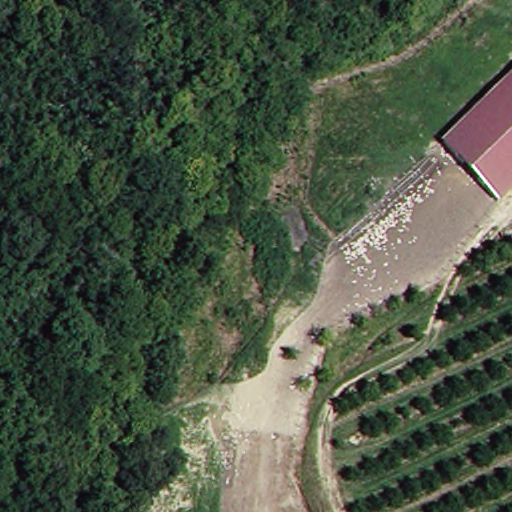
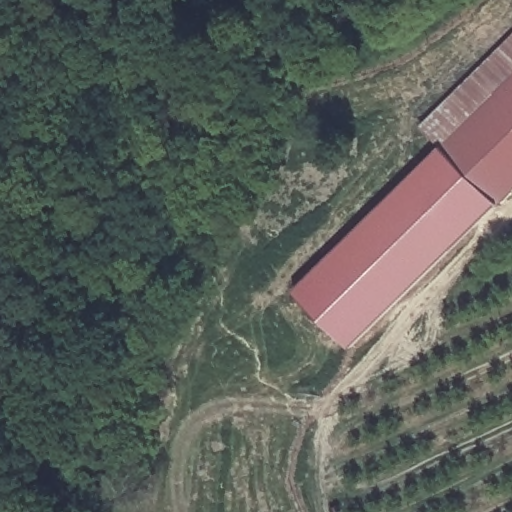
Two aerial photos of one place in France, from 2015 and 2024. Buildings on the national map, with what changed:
new [(512,35),(512,79),(441,148),(420,126),(512,35)]
unchanged [(494,206),(439,150),(512,79),(512,189),(494,206)]
new [(439,150),(494,206),(350,347),(295,290),(439,150)]

